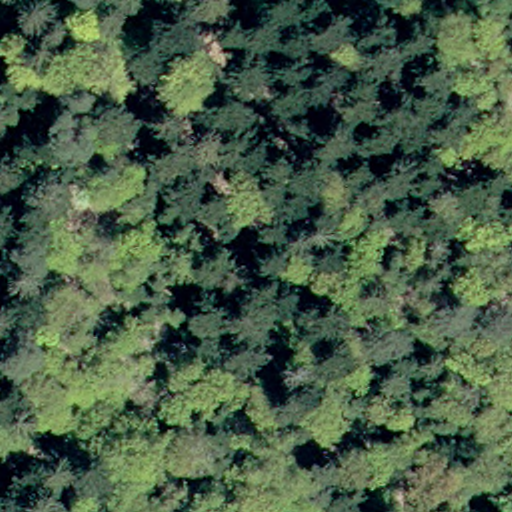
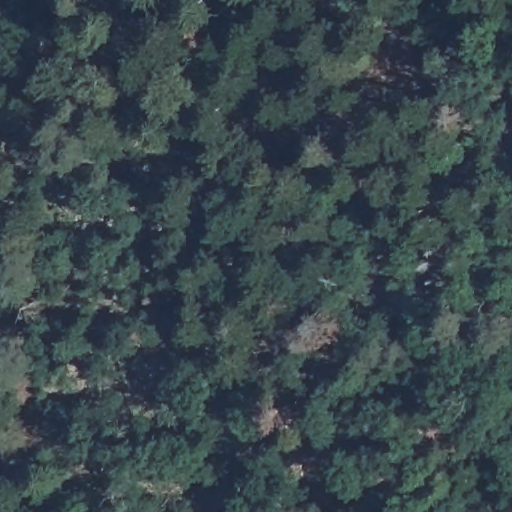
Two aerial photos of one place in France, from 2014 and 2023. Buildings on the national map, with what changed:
[]

